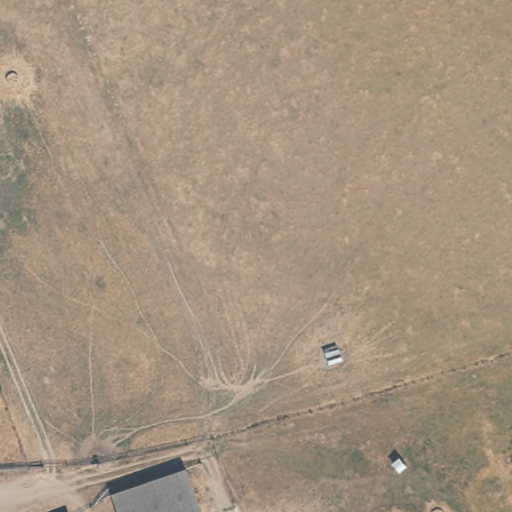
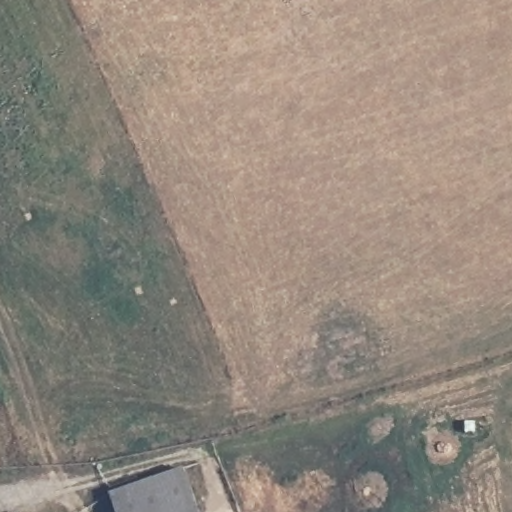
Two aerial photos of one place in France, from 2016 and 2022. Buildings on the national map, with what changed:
unchanged [(199,512),(120,512),(115,497),(186,473),(199,512)]

